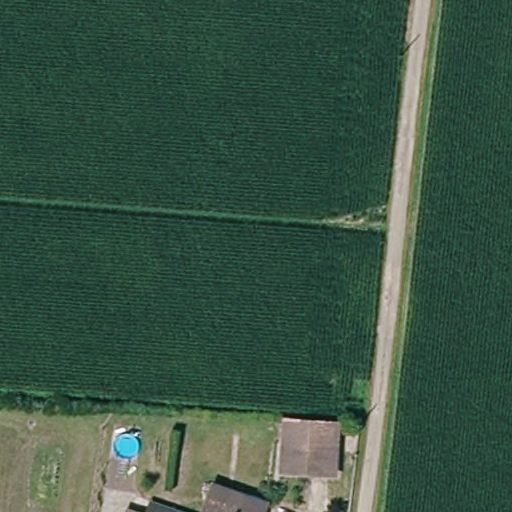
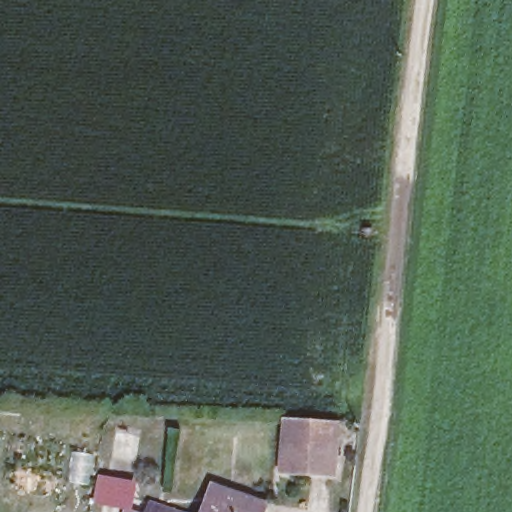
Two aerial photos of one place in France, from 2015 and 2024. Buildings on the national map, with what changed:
unchanged [(286,420),(339,424),(335,479),(282,475),(286,420)]
new [(94,503),(99,475),(139,482),(134,509),(142,512),(124,512),(125,510),(94,503)]
unchanged [(207,512),(211,501),(215,483),(269,499),(264,512),(207,512)]
new [(190,512),(147,512),(151,499),(190,512)]

